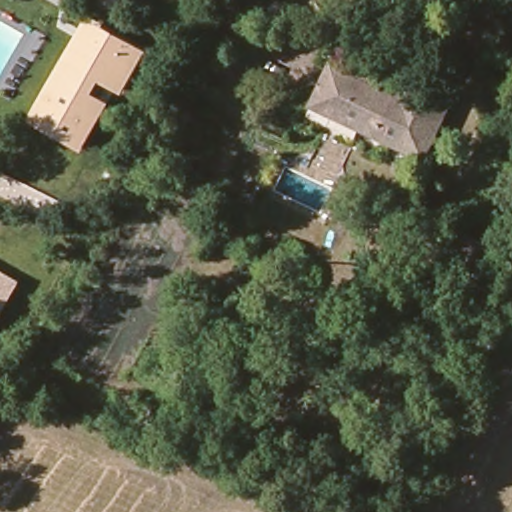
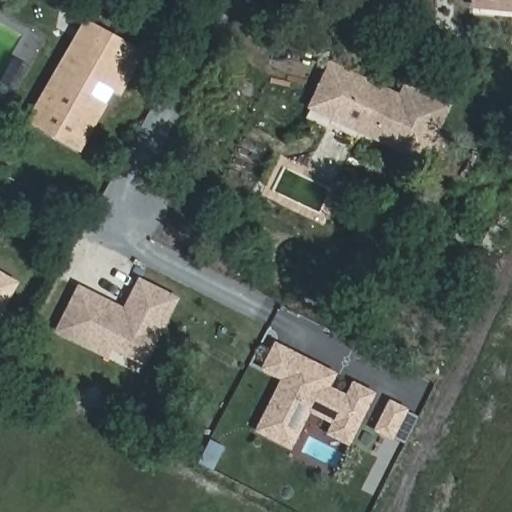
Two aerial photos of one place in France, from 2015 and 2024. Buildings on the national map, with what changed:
unchanged [(97,8),(98,0),(129,0),(128,9),(97,8)]
new [(473,0),(512,0),(512,12),(472,7),(473,0)]
unchanged [(125,99),(100,86),(95,98),(112,108),(84,155),(26,123),(85,19),(150,56),(125,99)]
unchanged [(407,93),(445,114),(418,160),(360,128),(315,105),(321,93),(335,68),(404,101),(407,93)]
unchanged [(0,317),(0,270),(21,281),(0,317)]
new [(78,284),(125,306),(139,279),(180,297),(145,366),(111,349),(106,358),(55,332),(78,284)]
new [(255,431),(280,380),(260,369),(275,341),(338,374),(333,385),(347,393),(353,382),(377,392),(350,446),(327,435),(330,425),(310,415),(291,450),(255,431)]
new [(390,398),(418,417),(406,442),(375,427),(390,398)]

